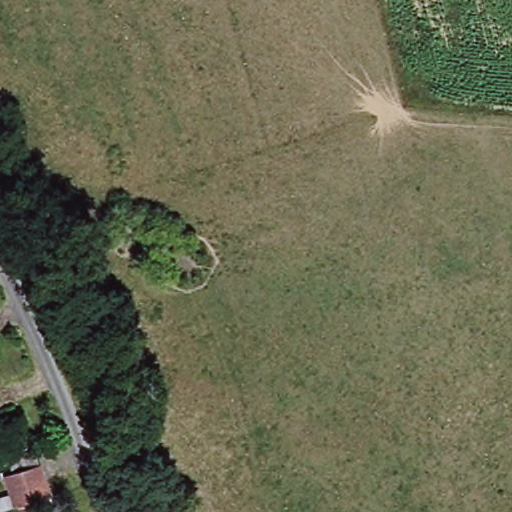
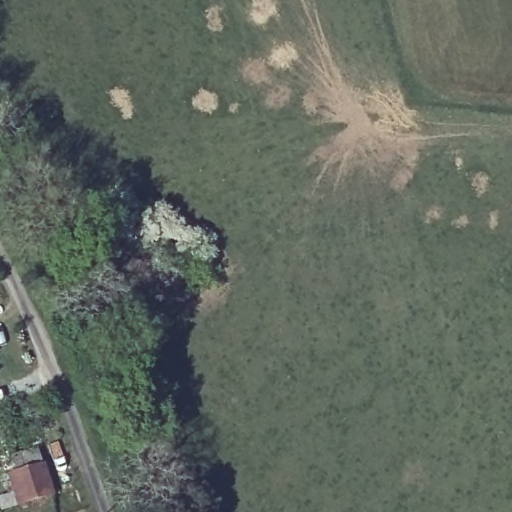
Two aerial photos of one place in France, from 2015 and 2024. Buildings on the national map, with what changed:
unchanged [(58,483),(29,496),(18,472),(47,460),(58,483)]

